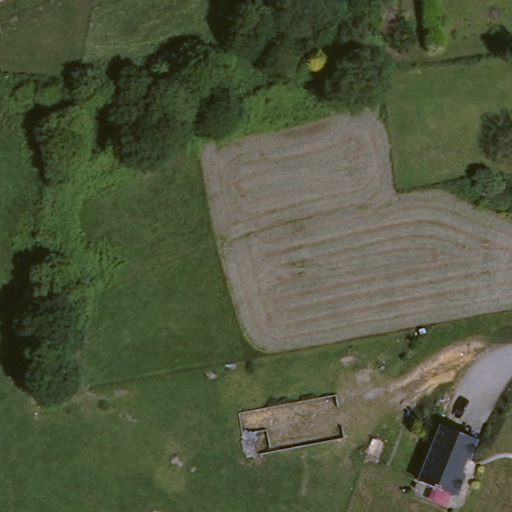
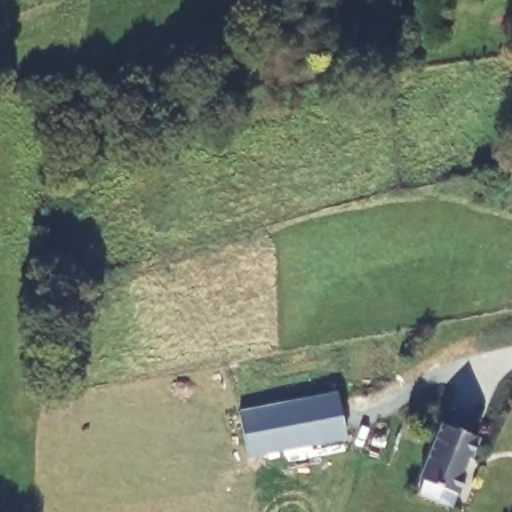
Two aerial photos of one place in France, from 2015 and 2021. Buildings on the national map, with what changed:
new [(332,395),(340,439),(242,457),(234,413),(332,395)]
unchanged [(470,456),(468,455),(464,466),(466,471),(458,492),(420,477),(442,421),(478,435),(470,456)]

